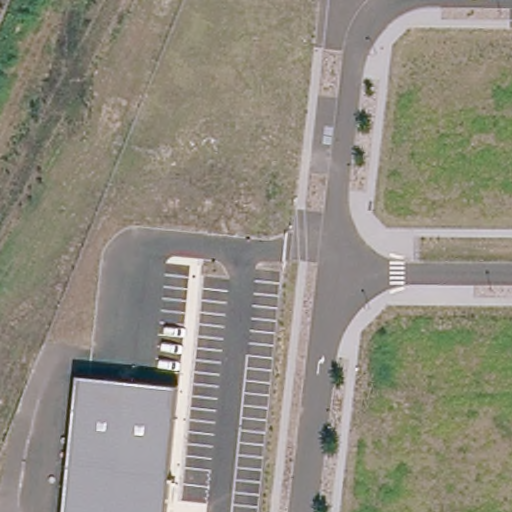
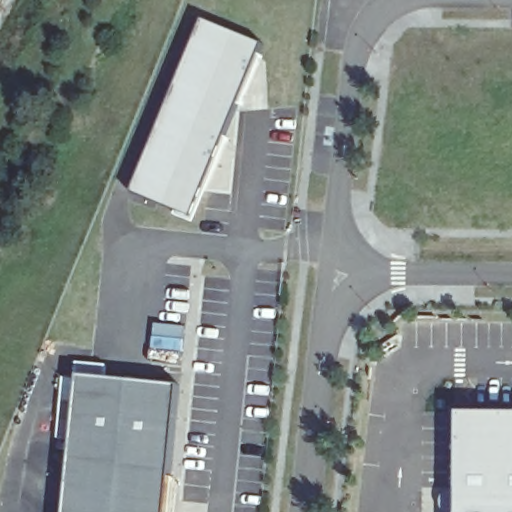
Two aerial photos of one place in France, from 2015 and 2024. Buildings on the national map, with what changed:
new [(202,19),(263,44),(192,219),(131,194),(202,19)]
unchanged [(178,387),(166,512),(65,512),(79,376),(178,387)]
new [(512,412),(512,512),(460,512),(461,412),(512,412)]

